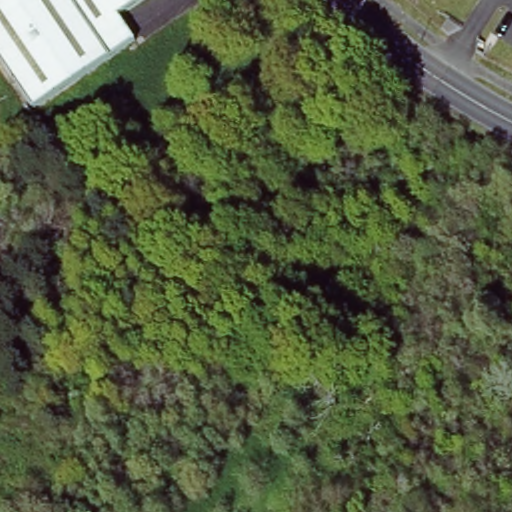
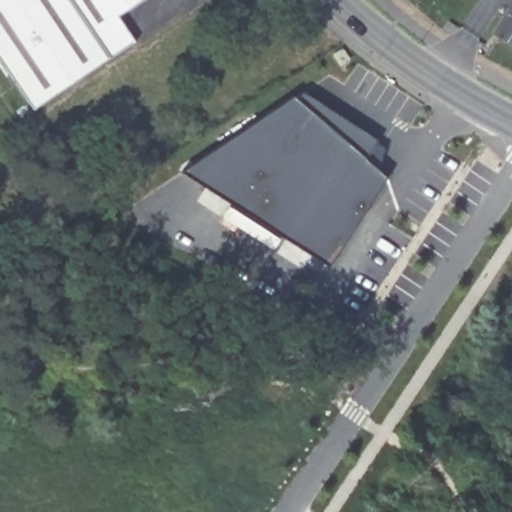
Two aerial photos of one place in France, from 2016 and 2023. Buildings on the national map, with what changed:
unchanged [(119,22),(134,46),(28,113),(0,68),(0,0),(153,0),(119,22)]
new [(329,266),(182,172),(294,96),(297,98),(301,92),(377,138),(373,143),(382,148),(377,169),(386,177),(329,266)]

